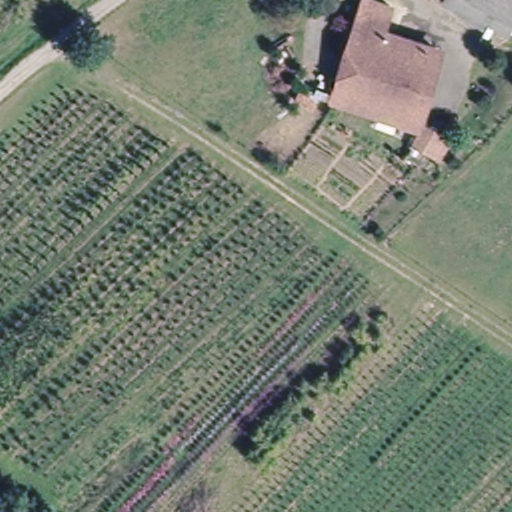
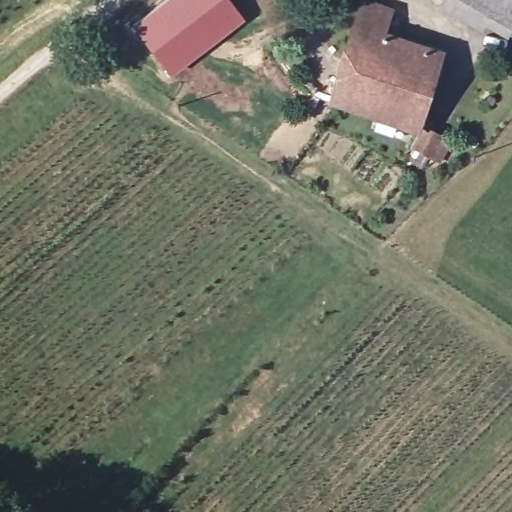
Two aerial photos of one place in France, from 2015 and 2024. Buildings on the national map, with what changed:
new [(134,24),(166,0),(232,0),(245,17),(172,73),(134,24)]
unchanged [(387,24),(436,42),(412,120),(329,93),(359,0),(390,0),(387,24)]
unchanged [(512,25),(508,32),(456,0),(512,0),(512,25)]
unchanged [(487,76),(500,54),(512,61),(512,65),(500,84),(487,76)]
unchanged [(419,137),(423,123),(445,130),(440,144),(432,141),(419,137)]

